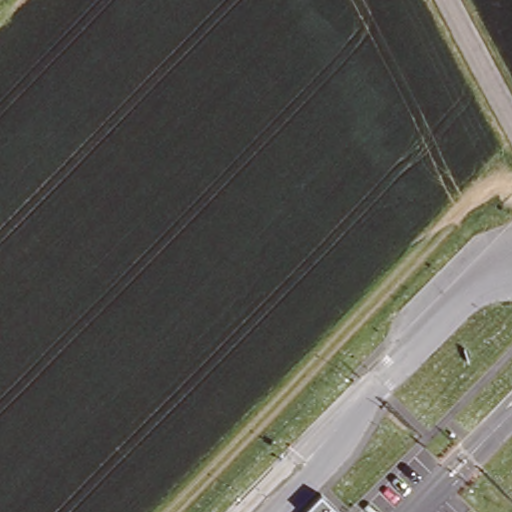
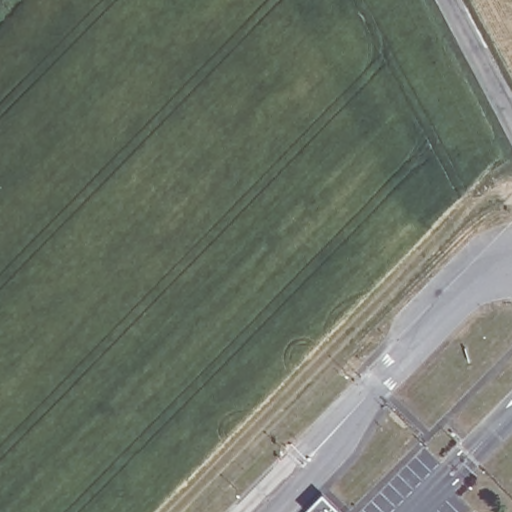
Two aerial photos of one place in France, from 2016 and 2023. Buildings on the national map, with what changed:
unchanged [(322,491),(344,511),(343,512),(308,512),(306,509),(322,491)]

